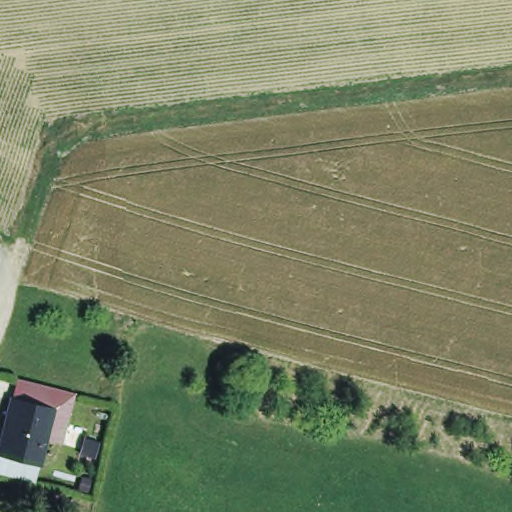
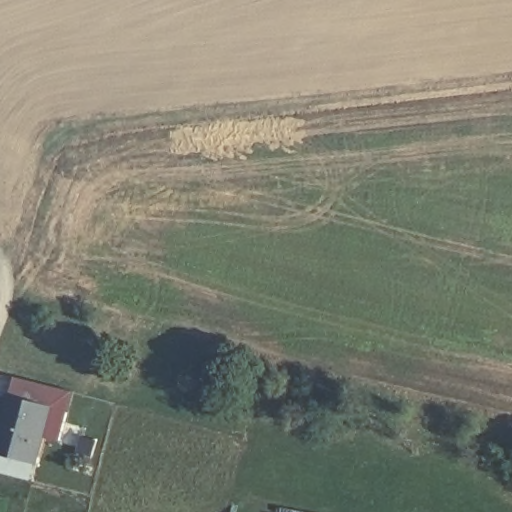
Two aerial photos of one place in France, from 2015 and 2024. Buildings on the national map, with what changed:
unchanged [(5,456),(15,415),(20,400),(60,411),(55,427),(45,467),(5,456)]

